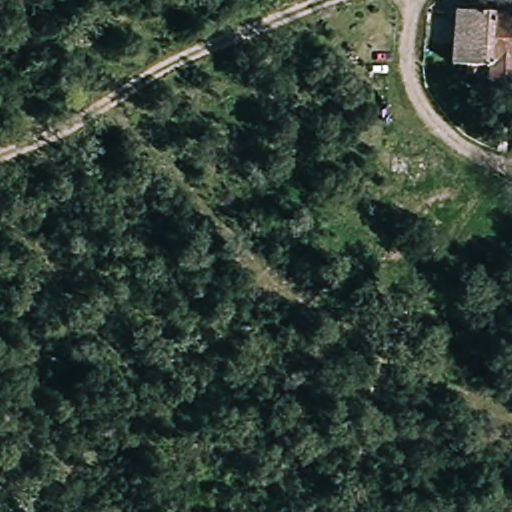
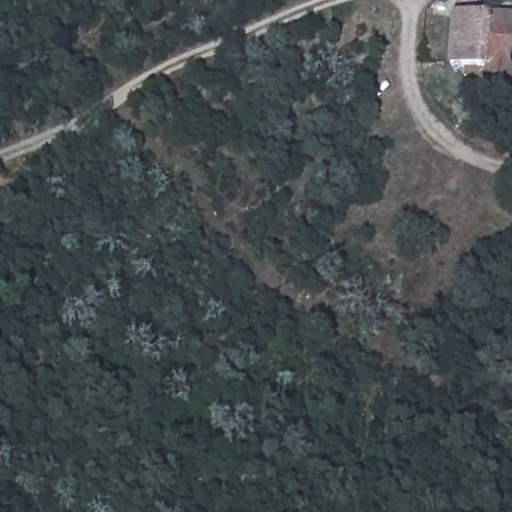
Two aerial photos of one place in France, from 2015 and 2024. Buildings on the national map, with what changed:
unchanged [(485,87),(486,77),(470,74),(470,65),(455,64),(460,15),(512,17),(512,89),(485,87)]

